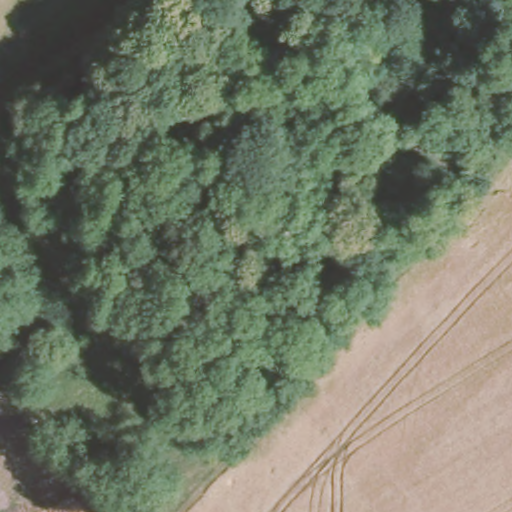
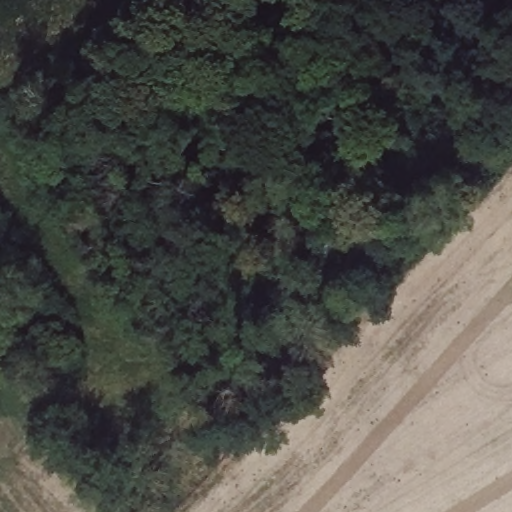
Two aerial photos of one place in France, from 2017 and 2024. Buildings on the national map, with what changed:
unchanged [(343,244),(319,257),(309,229),(331,216),(343,244)]

